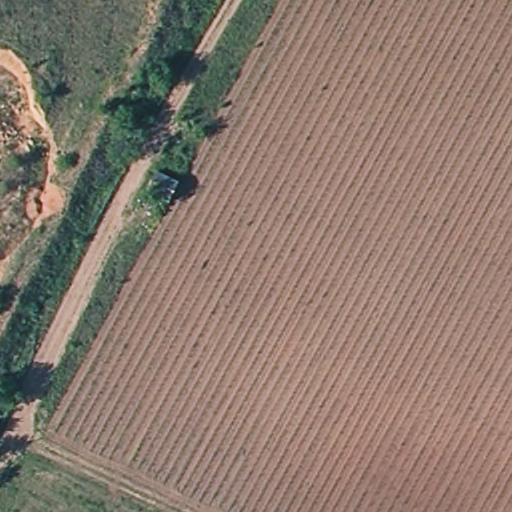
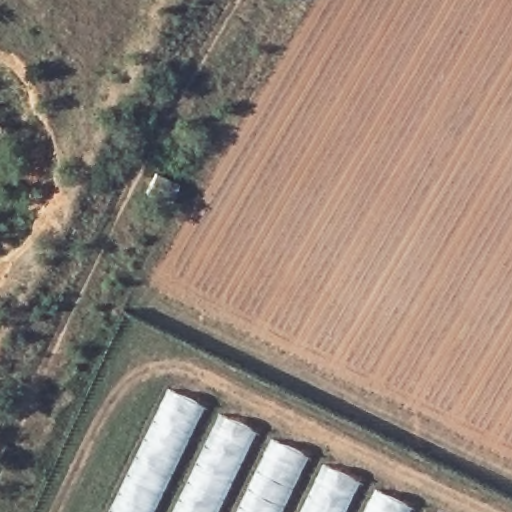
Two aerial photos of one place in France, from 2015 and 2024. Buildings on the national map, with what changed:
unchanged [(164,202),(148,191),(158,171),(178,182),(164,202)]
new [(168,390),(422,512),(110,512),(168,390)]

